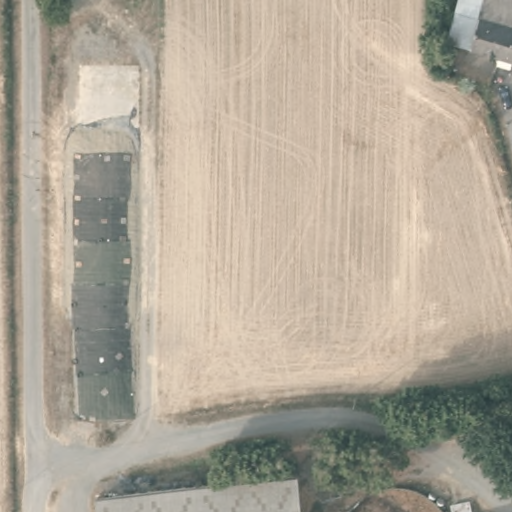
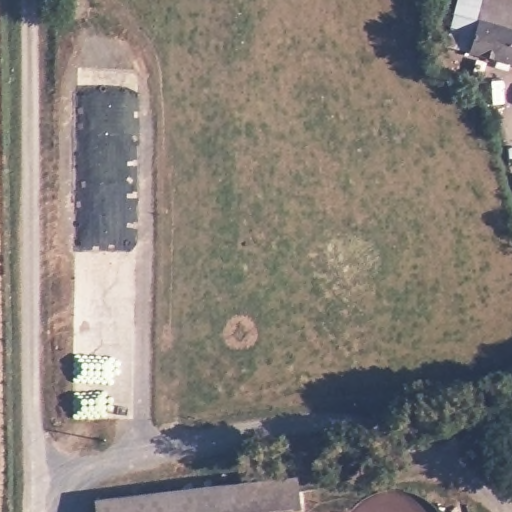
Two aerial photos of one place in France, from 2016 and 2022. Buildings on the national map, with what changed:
unchanged [(459,0),(512,0),(512,65),(444,46),(459,0)]
unchanged [(298,474),(303,512),(101,512),(99,494),(298,474)]

